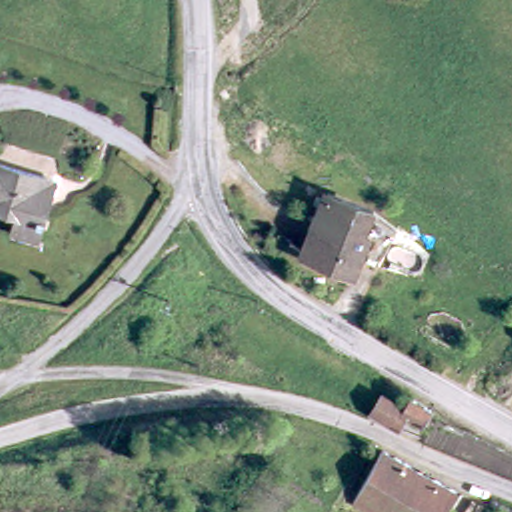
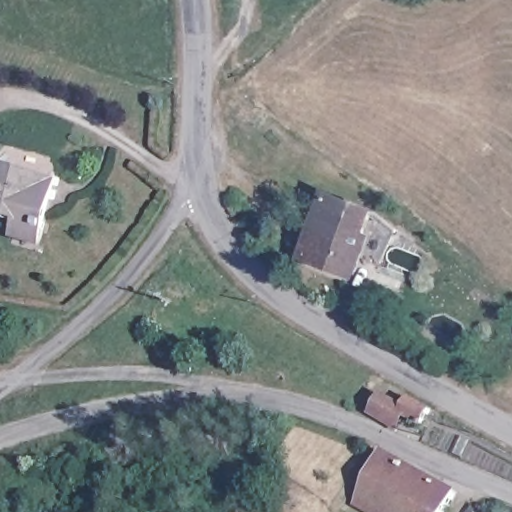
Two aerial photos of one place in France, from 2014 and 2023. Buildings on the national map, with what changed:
unchanged [(37,230),(0,218),(0,163),(53,180),(37,230)]
unchanged [(326,183),(371,206),(393,226),(375,262),(354,251),(346,266),(302,244),(326,183)]
unchanged [(447,422),(438,438),(417,427),(411,441),(386,431),(398,405),(422,416),(426,409),(447,422)]
unchanged [(441,512),(375,512),(349,496),(381,445),(457,490),(441,512)]

